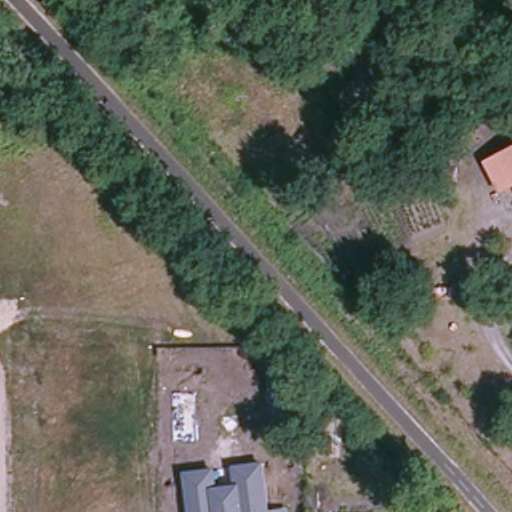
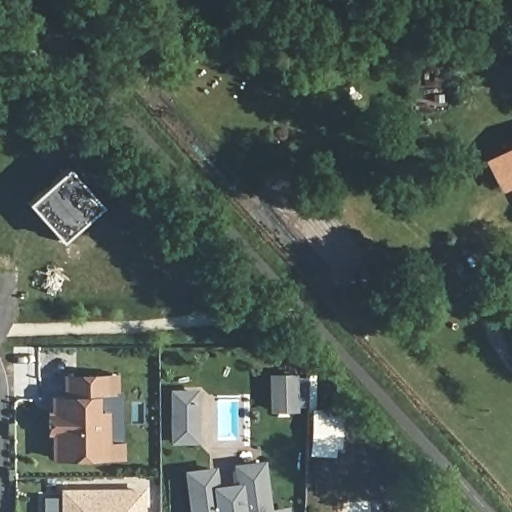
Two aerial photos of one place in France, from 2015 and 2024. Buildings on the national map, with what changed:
unchanged [(498,182),(485,158),(512,145),(512,175),(498,182)]
new [(44,183),(60,170),(94,208),(53,244),(20,205),(38,189),(44,183)]
new [(269,411),(269,372),(296,373),(296,411),(269,411)]
new [(50,459),(50,435),(45,435),(45,410),(50,410),(49,396),(63,396),(63,375),(118,374),(119,391),(121,391),(121,441),(125,441),(125,459),(50,459)]
new [(197,389),(198,443),(170,443),(169,388),(197,389)]
unchanged [(351,412),(352,443),(339,443),(338,412),(351,412)]
unchanged [(296,508),(296,512),(191,512),(186,469),(217,465),(220,484),(236,482),(234,462),(268,459),(274,510),(296,508)]
new [(144,512),(59,512),(59,488),(144,487),(144,512)]

